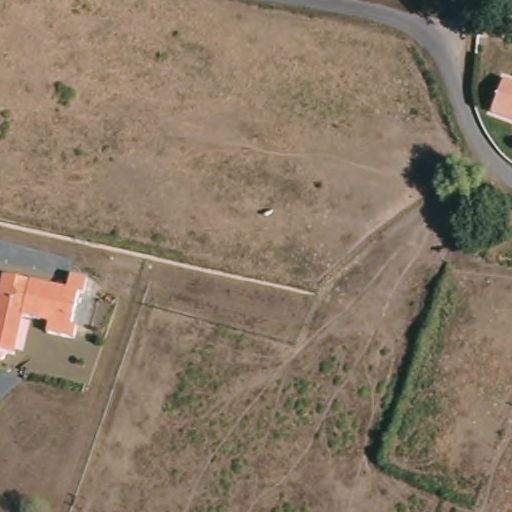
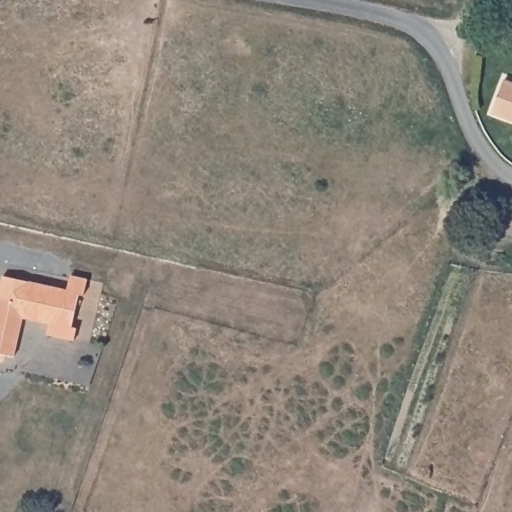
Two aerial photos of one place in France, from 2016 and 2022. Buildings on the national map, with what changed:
unchanged [(512,89),(512,126),(488,116),(500,84),(512,89)]
unchanged [(71,280),(93,285),(92,292),(69,287),(71,280)]
unchanged [(70,332),(76,333),(74,344),(47,339),(49,328),(22,322),(14,360),(9,359),(9,363),(7,366),(4,369),(0,370),(0,297),(4,281),(30,287),(78,297),(70,332)]

